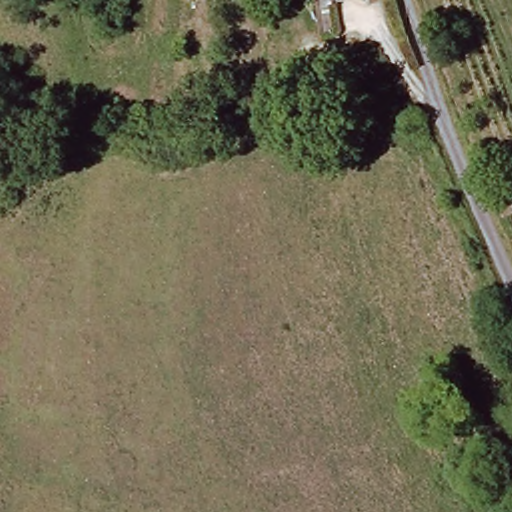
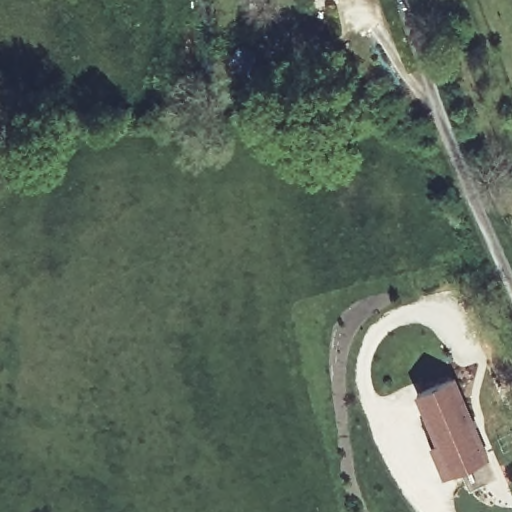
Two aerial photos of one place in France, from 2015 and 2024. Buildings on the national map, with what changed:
new [(492,456),(446,476),(432,444),(438,442),(417,393),(457,375),(492,456)]

